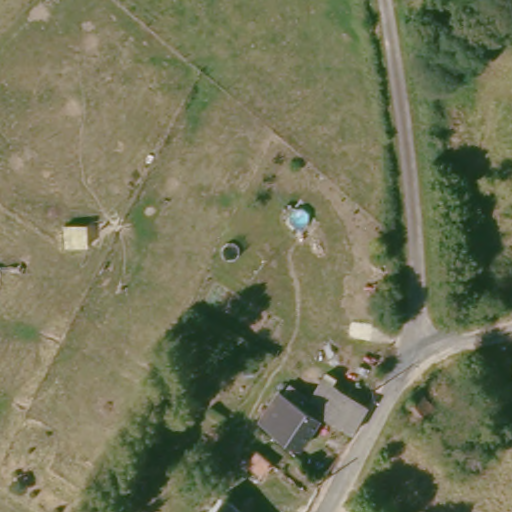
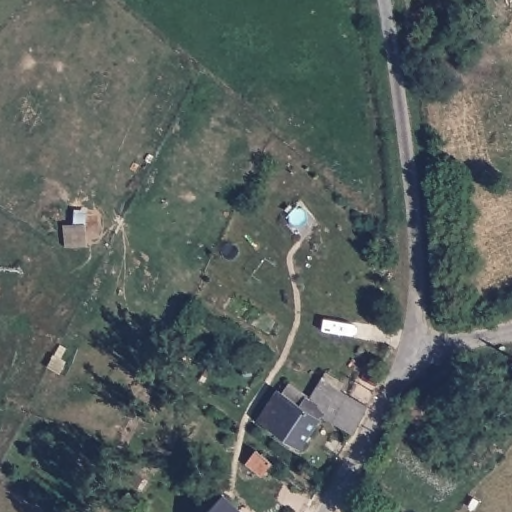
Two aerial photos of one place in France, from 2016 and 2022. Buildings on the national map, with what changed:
unchanged [(315,417),(299,445),(259,421),(275,394),(279,397),(287,386),(302,396),(305,398),(317,379),(337,391),(365,407),(352,430),(326,415),(315,417)]
unchanged [(270,462),(260,474),(243,461),(252,449),(270,462)]
unchanged [(215,499),(231,512),(205,512),(215,499)]

